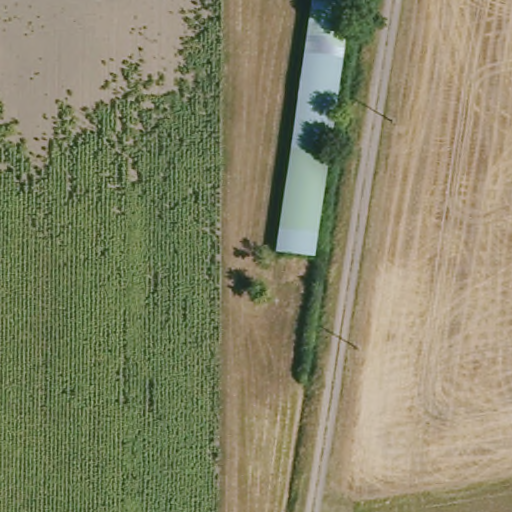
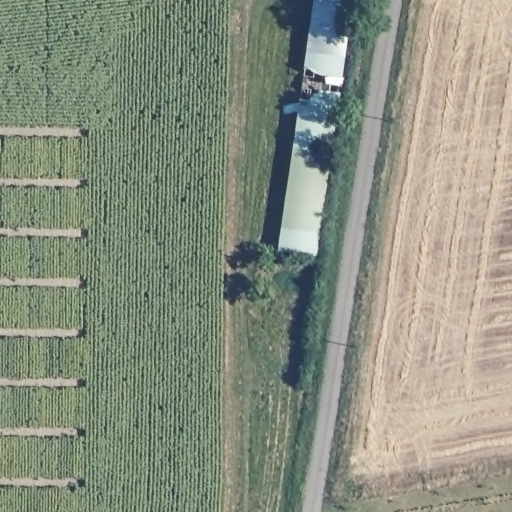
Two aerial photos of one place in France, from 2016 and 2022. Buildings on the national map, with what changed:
unchanged [(272,249),(306,0),(346,0),(311,254),(272,249)]

